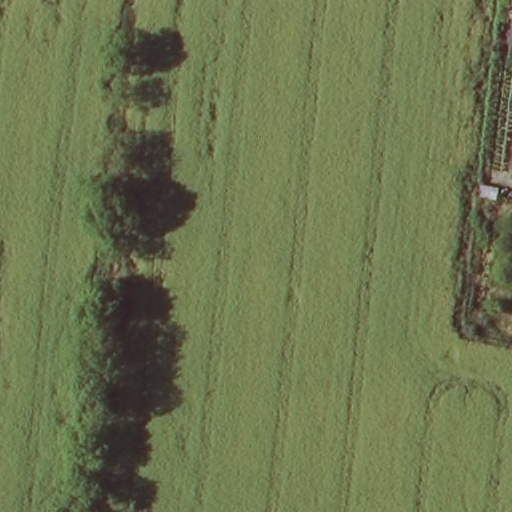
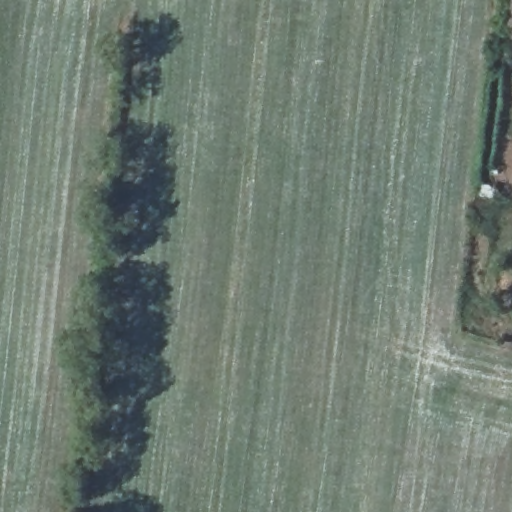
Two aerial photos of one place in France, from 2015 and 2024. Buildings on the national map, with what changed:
unchanged [(512,27),(512,49),(508,48),(512,27)]

